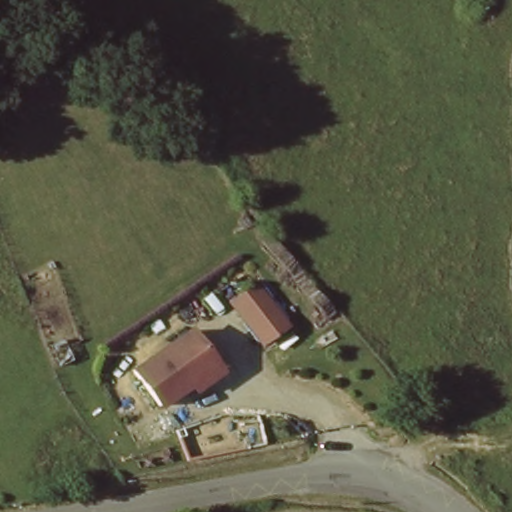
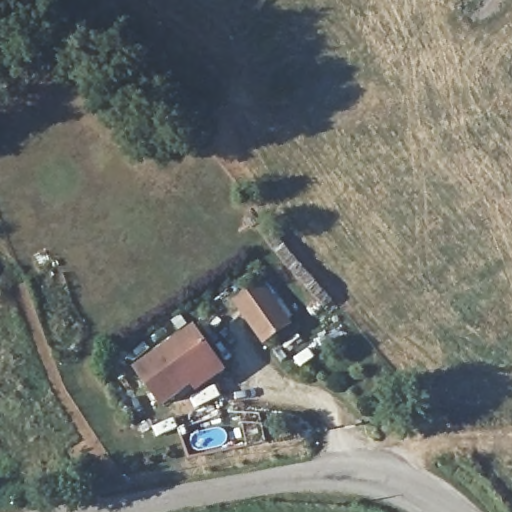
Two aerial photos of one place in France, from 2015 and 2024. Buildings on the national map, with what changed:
unchanged [(264,345),(233,304),(261,283),(289,323),(264,345)]
unchanged [(162,413),(138,376),(196,338),(218,370),(192,387),(195,392),(162,413)]

